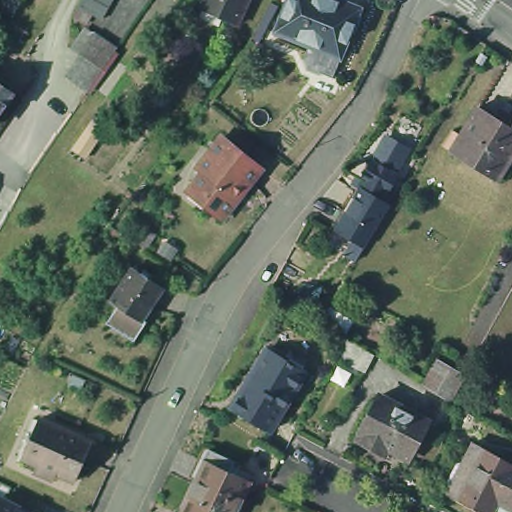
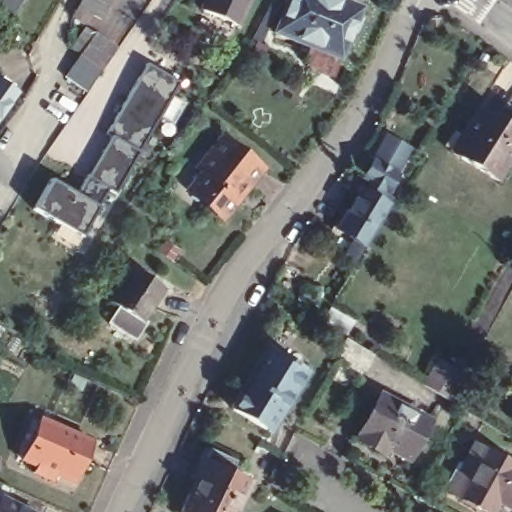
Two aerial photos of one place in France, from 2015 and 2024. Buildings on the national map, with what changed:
unchanged [(10,0),(15,0),(14,2),(10,0)]
unchanged [(85,5),(82,4),(84,0),(113,0),(104,16),(85,5)]
unchanged [(251,0),(242,20),(204,3),(205,0),(251,0)]
unchanged [(360,12),(353,31),(348,30),(338,55),(271,27),(283,0),(349,0),(359,4),(356,10),(360,12)]
demolished [(432,26),(431,21),(430,15),(435,15),(441,14),(442,20),(443,25),(432,26)]
unchanged [(85,54),(100,31),(122,46),(107,69),(93,89),(70,75),(85,54)]
unchanged [(486,63),(481,70),(476,67),(480,60),(486,63)]
new [(78,193),(113,139),(106,134),(147,62),(181,80),(118,194),(110,190),(84,238),(36,209),(52,181),(78,193)]
unchanged [(1,75),(13,85),(10,91),(12,94),(0,110),(0,76),(1,75)]
unchanged [(459,165),(450,160),(460,142),(478,115),(495,125),(501,116),(510,121),(512,123),(512,162),(496,188),(485,181),(459,165)]
demolished [(94,117),(106,126),(86,156),(74,148),(94,117)]
unchanged [(203,160),(226,130),(266,161),(228,212),(210,199),(215,193),(196,180),(207,165),(203,160)]
unchanged [(355,179),(371,154),(379,158),(390,140),(402,147),(397,156),(403,160),(397,170),(391,166),(376,191),(388,199),(364,238),(336,221),(360,182),(355,179)]
unchanged [(133,326),(110,311),(120,295),(112,290),(134,257),(163,277),(142,310),(144,311),(133,326)]
unchanged [(262,356),(301,380),(265,437),(227,414),(262,356)]
unchanged [(427,380),(440,359),(441,360),(446,363),(451,366),(438,387),(433,385),(429,381),(427,380)]
unchanged [(376,451),(356,440),(360,432),(355,429),(375,395),(420,421),(401,456),(381,444),(376,451)]
unchanged [(23,459),(41,417),(92,441),(74,481),(23,459)]
unchanged [(462,462),(469,460),(479,442),(512,460),(512,507),(503,502),(498,512),(493,512),(453,490),(454,486),(452,480),(462,462)]
unchanged [(216,450),(219,452),(213,465),(254,485),(241,512),(187,512),(216,450)]
unchanged [(7,491),(44,512),(0,512),(0,505),(7,491)]

